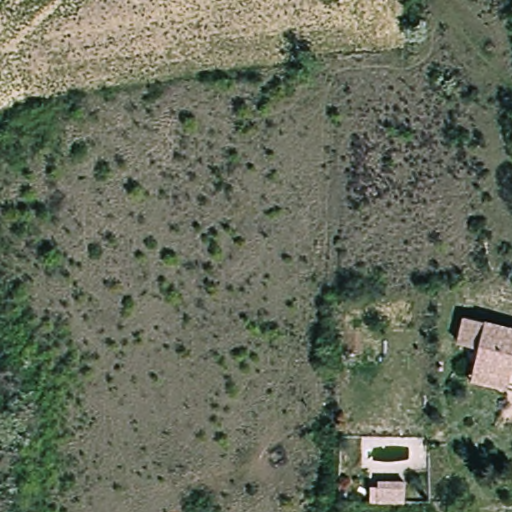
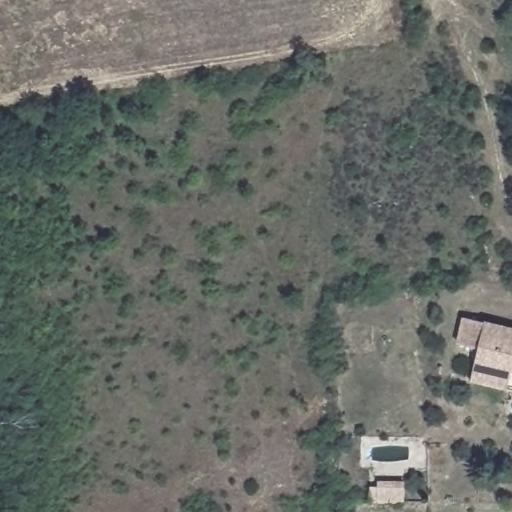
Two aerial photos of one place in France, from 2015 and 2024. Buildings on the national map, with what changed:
unchanged [(476,371),(478,352),(461,350),(465,322),(512,328),(512,386),(475,381),(476,371)]
unchanged [(407,484),(406,504),(373,503),(374,488),(381,488),(381,484),(407,484)]

